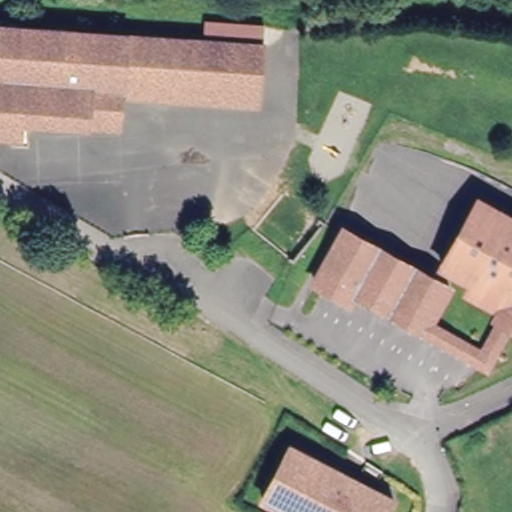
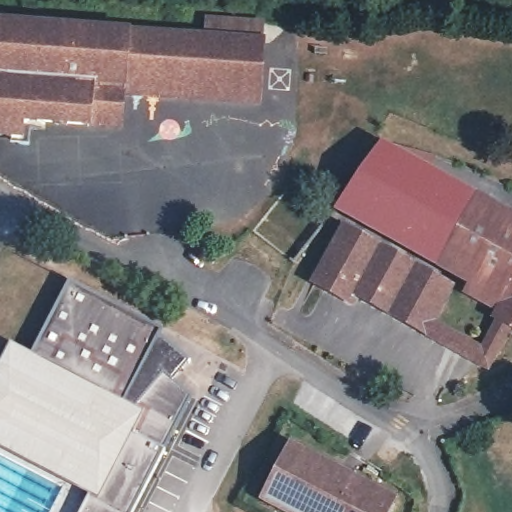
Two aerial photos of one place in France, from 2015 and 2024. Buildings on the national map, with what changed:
unchanged [(111,127),(88,126),(23,121),(21,121),(20,137),(0,136),(0,24),(185,37),(182,91),(121,87),(120,112),(119,128),(111,127)]
unchanged [(255,42),(261,42),(257,105),(245,104),(181,100),(182,91),(185,37),(255,42)]
new [(335,209),(380,146),(474,197),(436,264),(335,209)]
unchanged [(488,315),(492,307),(460,288),(464,280),(436,264),(474,197),(512,218),(512,328),(503,323),(493,317),(488,315)]
unchanged [(338,226),(444,286),(424,321),(419,331),(363,299),(349,291),(344,299),(317,283),(308,278),(309,276),(322,254),(338,226)]
new [(160,337),(189,362),(173,381),(192,397),(131,512),(79,512),(88,495),(0,449),(0,361),(9,342),(31,355),(67,282),(164,331),(160,337)]
unchanged [(503,323),(479,365),(419,331),(424,321),(474,350),(493,317),(503,323)]
unchanged [(280,512),(252,497),(280,443),(328,468),(357,483),(383,496),(374,512),(280,512)]

